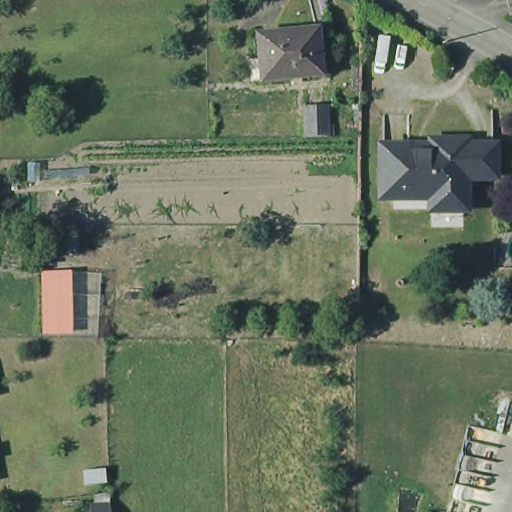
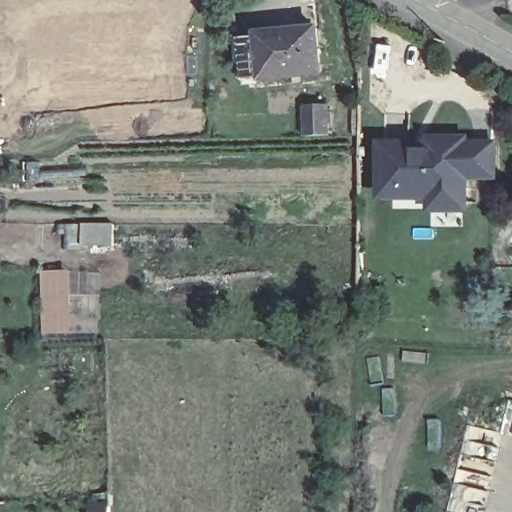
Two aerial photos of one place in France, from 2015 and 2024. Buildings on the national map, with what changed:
unchanged [(322,74),(252,80),(250,60),(260,59),(257,34),(301,30),(318,29),(319,40),(319,42),(322,74)]
unchanged [(327,105),(328,136),(302,136),(302,106),(327,105)]
unchanged [(427,144),(428,137),(472,137),(472,144),(500,143),(499,184),(470,184),(469,216),(427,216),(427,202),(379,202),(378,144),(427,144)]
unchanged [(71,270),(72,333),(42,334),(41,271),(71,270)]
unchanged [(93,512),(92,508),(111,507),(111,512),(93,512)]

